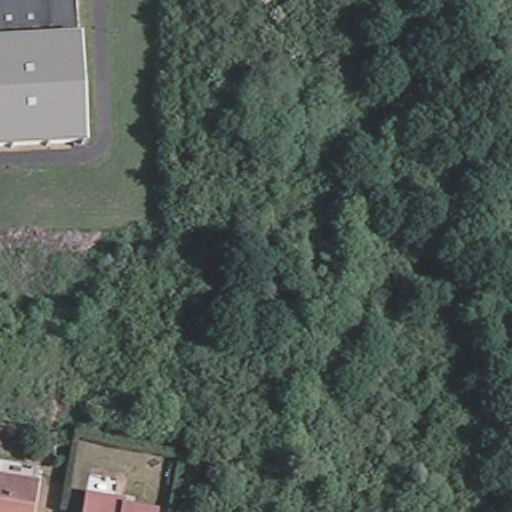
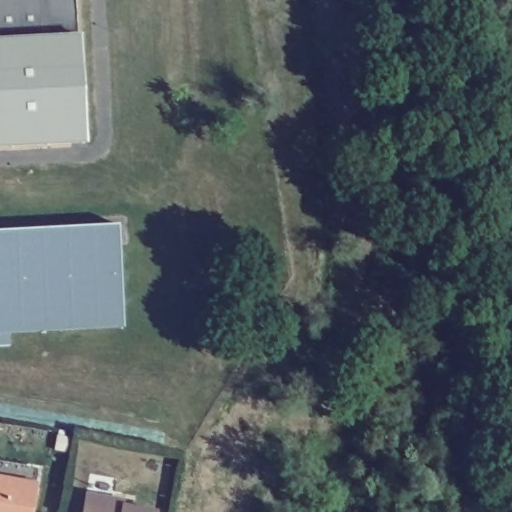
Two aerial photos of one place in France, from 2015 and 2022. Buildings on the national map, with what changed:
unchanged [(79,37),(79,40),(78,40),(84,141),(85,141),(85,144),(81,144),(81,142),(48,144),(48,146),(46,146),(45,144),(12,146),(12,148),(10,148),(10,146),(0,146),(0,0),(76,0),(78,37),(79,37)]
new [(118,224),(123,327),(10,333),(10,346),(0,346),(0,231),(118,224)]
unchanged [(38,477),(35,490),(32,512),(0,512),(0,470),(38,477)]
unchanged [(86,501),(88,485),(115,490),(112,506),(124,507),(123,512),(84,512),(86,501)]

